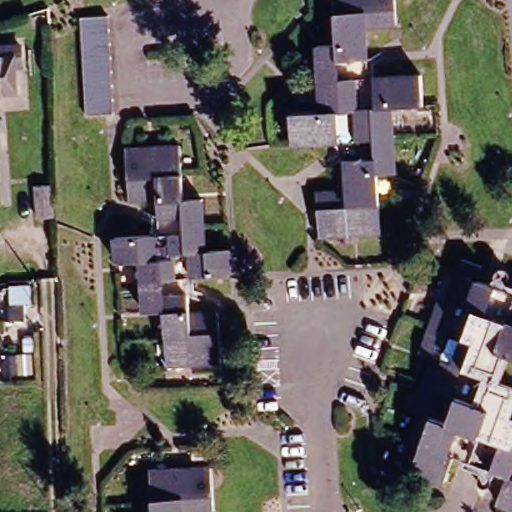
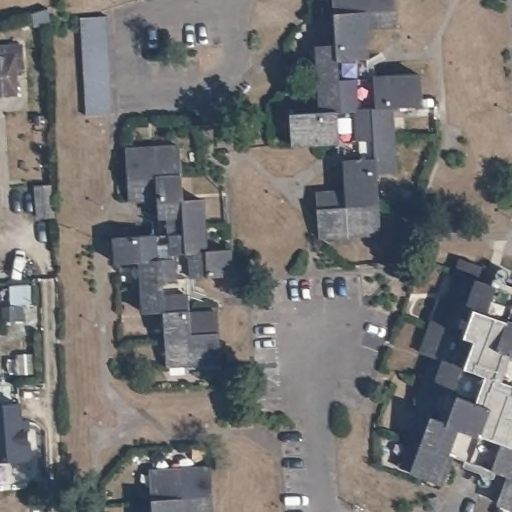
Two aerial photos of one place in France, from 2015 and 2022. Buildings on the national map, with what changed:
unchanged [(342,195),(340,144),(287,147),(285,116),(317,115),(316,49),(338,47),(337,0),(396,0),(397,29),(366,31),(367,81),(420,78),(420,109),(388,111),(390,176),(370,177),(372,238),(313,241),(312,196),(342,195)]
unchanged [(22,16),(47,9),(47,22),(27,27),(22,16)]
unchanged [(113,114),(85,117),(80,19),(107,17),(113,114)]
unchanged [(8,47),(22,47),(22,57),(14,57),(15,72),(2,72),(0,73),(0,45),(7,45),(8,47)]
unchanged [(115,236),(159,234),(158,197),(130,198),(128,150),(180,147),(182,203),(200,202),(202,255),(225,254),(227,281),(183,282),(185,316),(213,315),(215,365),(162,366),(162,312),(141,313),(140,262),(115,263),(115,236)]
unchanged [(36,184),(52,183),(52,226),(37,226),(36,184)]
unchanged [(417,411),(412,408),(432,356),(418,351),(439,296),(443,297),(460,254),(481,261),(475,277),(512,292),(512,509),(492,502),(502,476),(447,455),(437,483),(397,467),(417,411)]
new [(25,462),(0,462),(0,399),(25,399),(25,462)]
unchanged [(153,470),(210,468),(211,512),(154,512),(153,470)]

